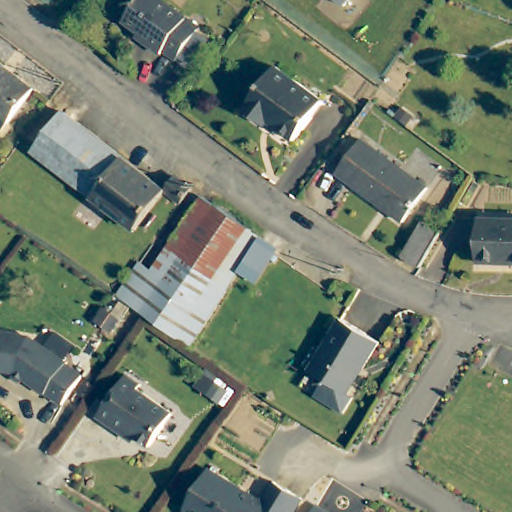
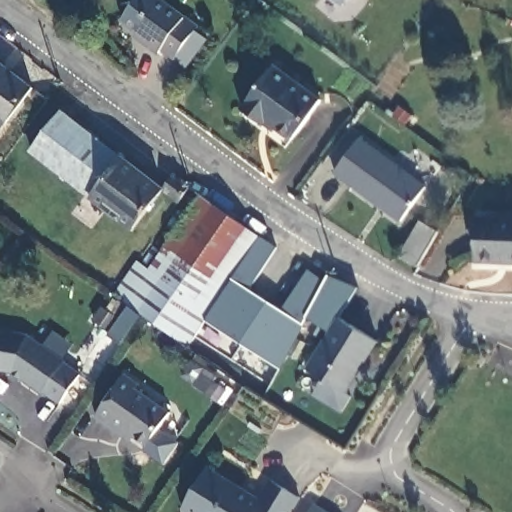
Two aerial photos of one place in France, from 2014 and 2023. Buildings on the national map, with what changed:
unchanged [(136,0),(162,0),(197,25),(169,62),(120,23),(136,0)]
unchanged [(8,124),(6,123),(0,134),(0,61),(37,89),(8,124)]
unchanged [(277,66),(324,100),(295,139),(270,119),(266,123),(248,110),(277,66)]
unchanged [(30,154),(59,114),(165,190),(136,231),(30,154)]
unchanged [(360,139),(414,180),(388,213),(333,171),(360,139)]
unchanged [(173,179),(188,189),(180,201),(165,190),(173,179)]
unchanged [(187,343),(143,312),(117,294),(142,259),(153,267),(206,194),(263,238),(239,272),(187,343)]
unchanged [(399,251),(418,216),(431,226),(411,260),(399,251)]
unchanged [(512,219),(512,262),(469,261),(470,218),(512,219)]
new [(239,272),(263,238),(275,248),(249,290),(280,310),(308,270),(325,280),(329,275),(359,289),(344,319),(334,334),(307,317),(279,368),(204,319),(239,272)]
demolished [(283,253),(259,287),(239,272),(263,238),(283,253)]
unchanged [(83,313),(92,300),(108,311),(99,325),(83,313)]
unchanged [(381,342),(366,366),(364,364),(347,390),(313,368),(344,319),(381,342)]
unchanged [(0,340),(2,330),(42,339),(78,366),(77,367),(93,379),(72,407),(56,395),(55,396),(24,374),(0,369),(0,340)]
unchanged [(135,373),(148,384),(145,389),(179,416),(157,448),(134,432),(131,437),(104,418),(135,373)]
unchanged [(279,481),(307,498),(298,512),(189,512),(188,511),(216,471),(265,502),(279,481)]
unchanged [(337,512),(329,512),(331,508),(337,512)]

